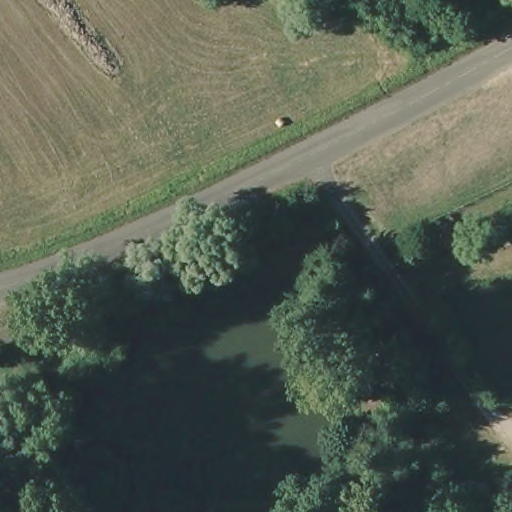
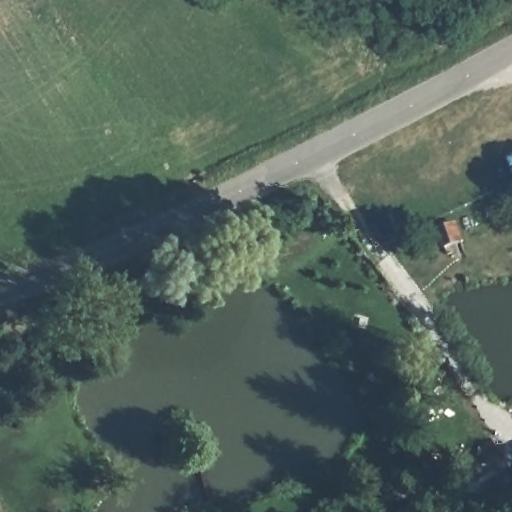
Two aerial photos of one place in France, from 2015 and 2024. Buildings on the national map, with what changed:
unchanged [(466,241),(447,251),(436,228),(457,218),(466,241)]

